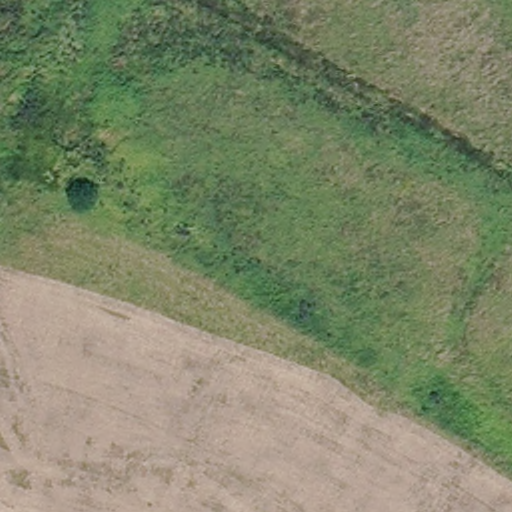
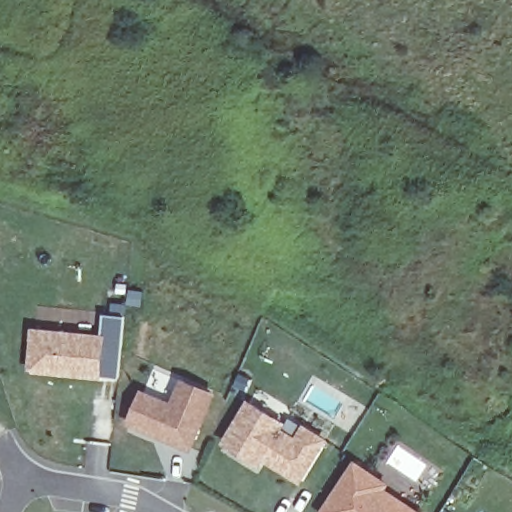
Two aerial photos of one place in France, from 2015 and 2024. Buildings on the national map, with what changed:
new [(102,380),(29,373),(32,329),(106,336),(102,380)]
new [(142,397),(173,410),(183,386),(212,398),(190,452),(130,426),(142,397)]
new [(302,484),(263,460),(259,467),(224,444),(249,401),(286,423),(284,428),(297,437),(304,425),(329,439),(302,484)]
new [(419,512),(323,512),(354,461),(390,485),(387,490),(419,512)]

